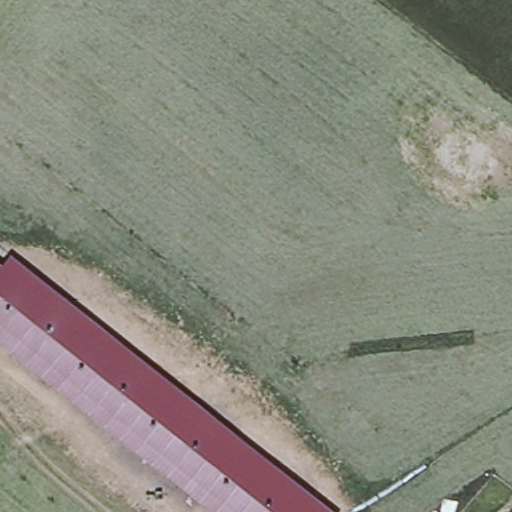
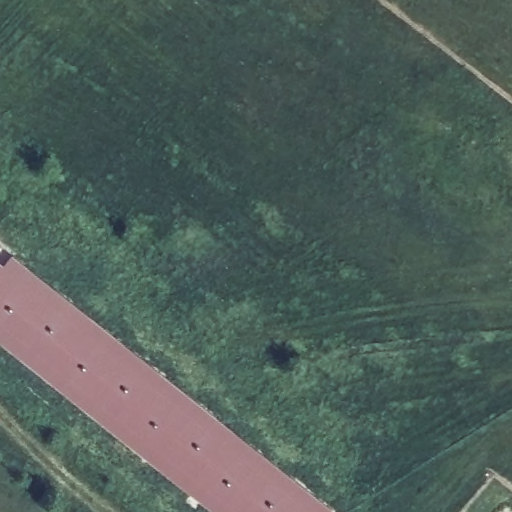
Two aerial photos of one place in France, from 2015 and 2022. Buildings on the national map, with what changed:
unchanged [(10,257),(333,512),(213,512),(0,344),(0,265),(2,266),(10,257)]

